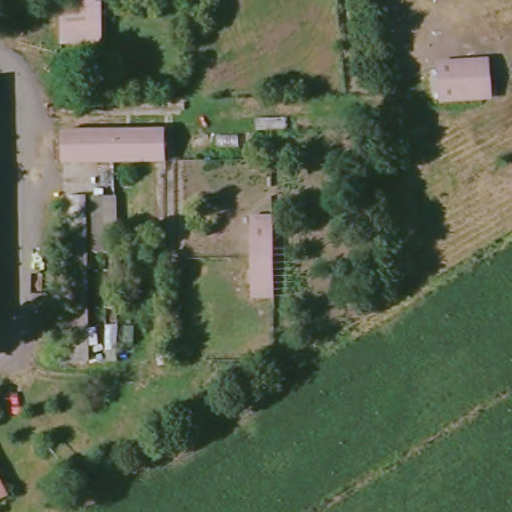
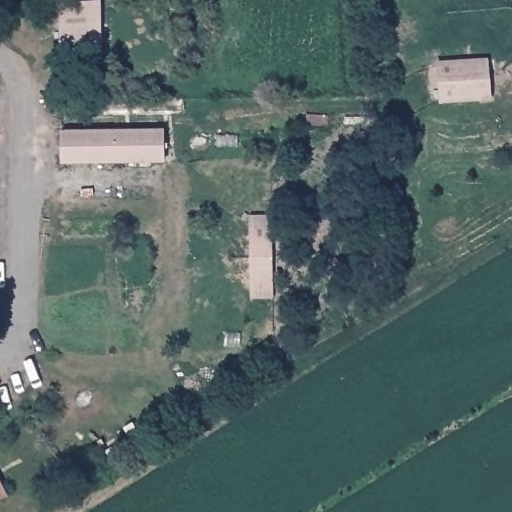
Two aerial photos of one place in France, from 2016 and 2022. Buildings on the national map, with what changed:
unchanged [(101,4),(103,44),(58,45),(58,4),(101,4)]
unchanged [(491,58),(492,99),(438,104),(436,61),(491,58)]
unchanged [(110,101),(110,116),(65,118),(65,103),(110,101)]
unchanged [(166,129),(166,159),(57,163),(56,133),(166,129)]
unchanged [(114,196),(118,358),(67,359),(63,198),(114,196)]
unchanged [(276,215),(273,302),(249,300),(251,214),(276,215)]
unchanged [(13,491),(0,500),(0,470),(13,491)]

